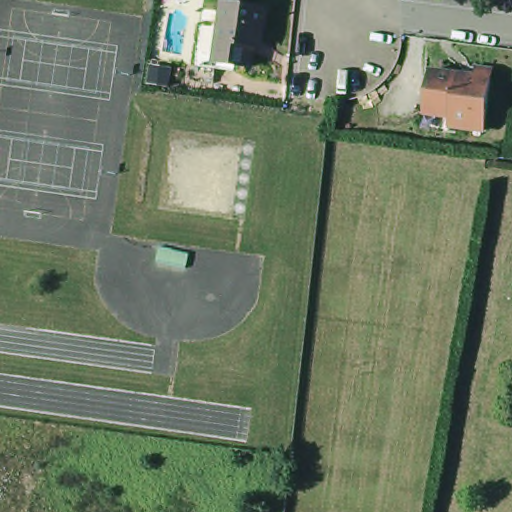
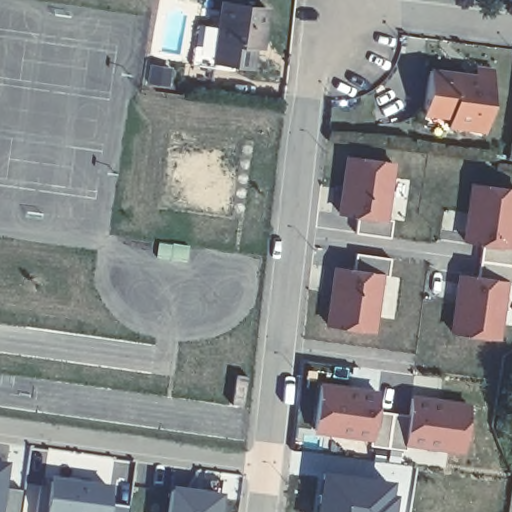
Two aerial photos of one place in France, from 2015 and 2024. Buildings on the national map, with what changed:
unchanged [(211,66),(211,61),(220,1),(265,7),(260,44),(253,44),(250,66),(230,63),(230,69),(211,66)]
unchanged [(418,103),(419,93),(421,72),(433,74),(465,78),(466,69),(484,71),(477,130),(442,126),(443,114),(417,111),(418,103)]
new [(356,217),(336,215),(345,154),(396,162),(388,219),(392,220),(390,237),(355,233),(356,217)]
new [(470,224),(471,211),(469,211),(473,182),(512,188),(505,244),(512,245),(512,263),(480,258),(482,242),(465,239),(467,223),(470,224)]
new [(390,258),(388,274),(385,274),(377,330),(325,323),(332,268),(354,268),(356,253),(390,258)]
new [(460,301),(461,288),(458,288),(460,272),(477,275),(480,258),(512,263),(512,279),(500,278),(492,335),(452,329),(456,300),(460,301)]
new [(378,391),(376,411),(410,416),(412,394),(470,402),(465,454),(407,444),(407,451),(371,447),(373,441),(316,434),(322,383),(378,391)]
new [(6,491),(23,493),(21,512),(0,512),(0,463),(11,464),(6,491)]
new [(390,495),(395,495),(393,512),(316,512),(321,470),(391,480),(390,495)]
new [(51,486),(51,480),(80,484),(81,482),(111,486),(109,501),(131,505),(130,512),(37,512),(41,484),(51,486)]
new [(186,491),(186,493),(205,496),(206,493),(220,495),(218,512),(168,512),(171,489),(186,491)]

